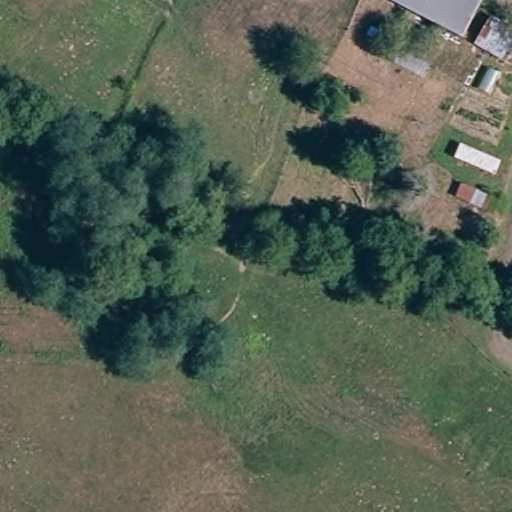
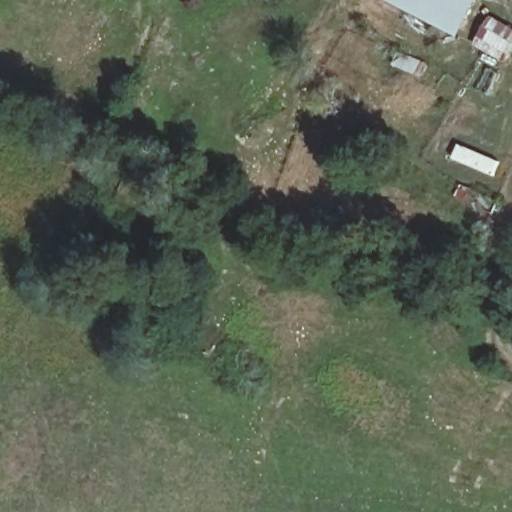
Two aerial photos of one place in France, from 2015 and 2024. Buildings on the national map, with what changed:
unchanged [(386,0),(478,0),(458,37),(386,0)]
unchanged [(490,218),(456,200),(462,189),(495,205),(490,218)]

